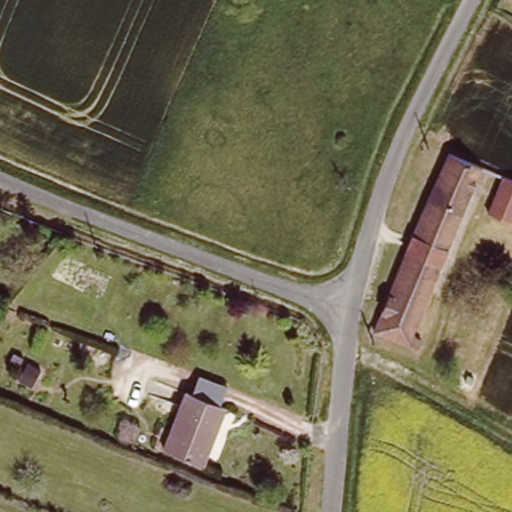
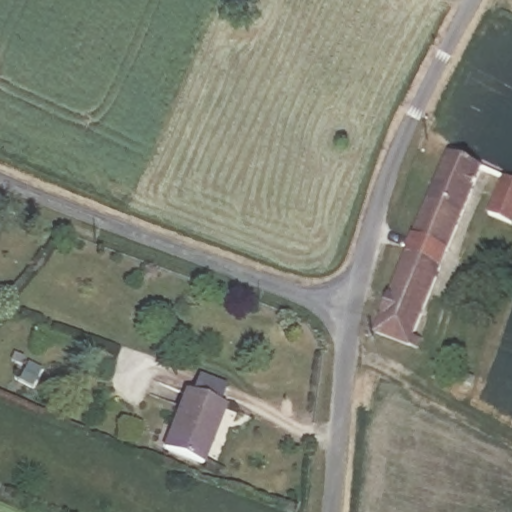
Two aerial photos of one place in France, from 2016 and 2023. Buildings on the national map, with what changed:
unchanged [(470,174),(414,346),(379,335),(437,160),(470,174)]
unchanged [(490,213),(503,175),(512,178),(512,220),(490,213)]
unchanged [(189,384),(231,397),(209,461),(164,448),(189,384)]

